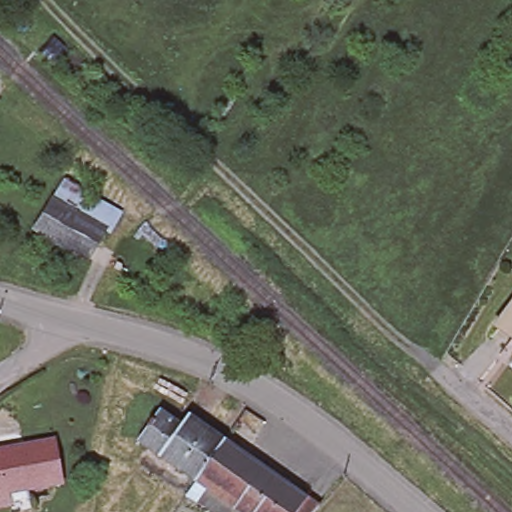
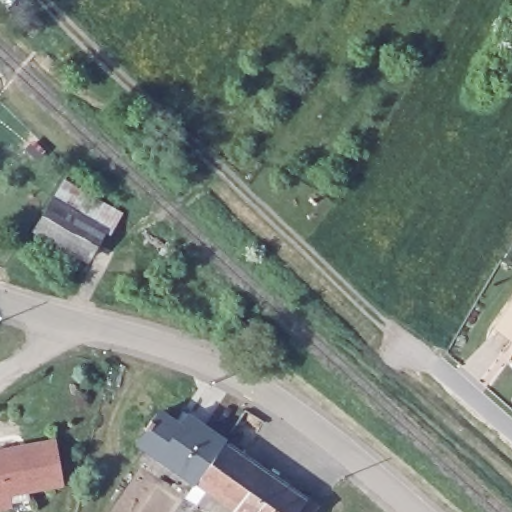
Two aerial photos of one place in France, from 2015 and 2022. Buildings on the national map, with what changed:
unchanged [(95,250),(43,220),(63,189),(113,220),(95,250)]
unchanged [(495,326),(512,304),(512,339),(495,326)]
unchanged [(255,333),(246,343),(225,325),(235,315),(255,333)]
unchanged [(224,440),(225,441),(196,483),(159,457),(138,442),(160,411),(181,425),(188,415),(224,440)]
unchanged [(262,467),(233,509),(196,483),(225,441),(262,467)]
unchanged [(0,457),(0,452),(53,442),(61,482),(8,493),(10,505),(0,507),(0,457)]
unchanged [(196,483),(233,509),(262,467),(307,499),(320,508),(316,512),(207,512),(186,497),(196,483)]

